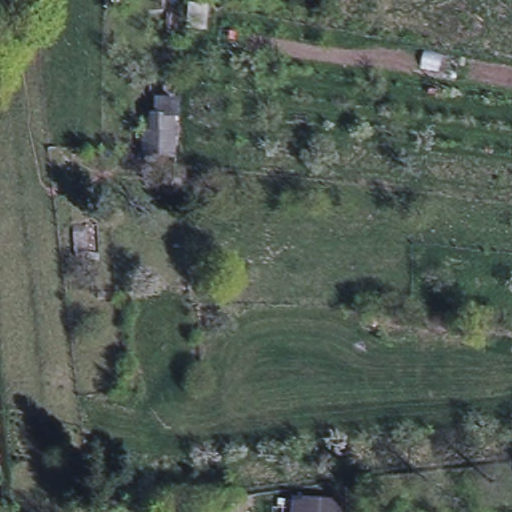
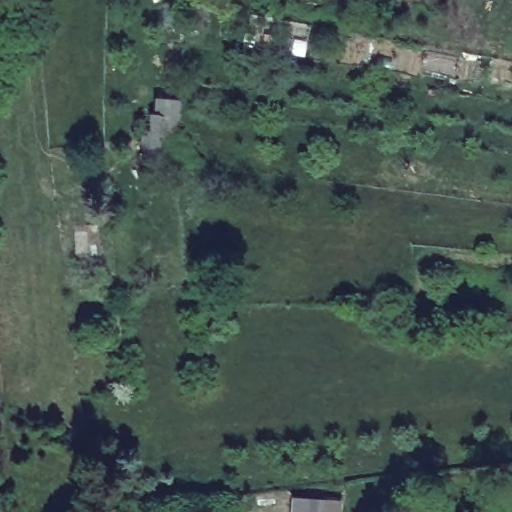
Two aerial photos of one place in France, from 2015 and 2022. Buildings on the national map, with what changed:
unchanged [(177,112),(178,159),(142,161),(141,131),(149,131),(149,111),(177,112)]
unchanged [(99,223),(101,257),(89,258),(87,223),(99,223)]
unchanged [(105,291),(106,297),(99,298),(99,292),(105,291)]
unchanged [(341,512),(291,512),(292,494),(342,497),(341,512)]

